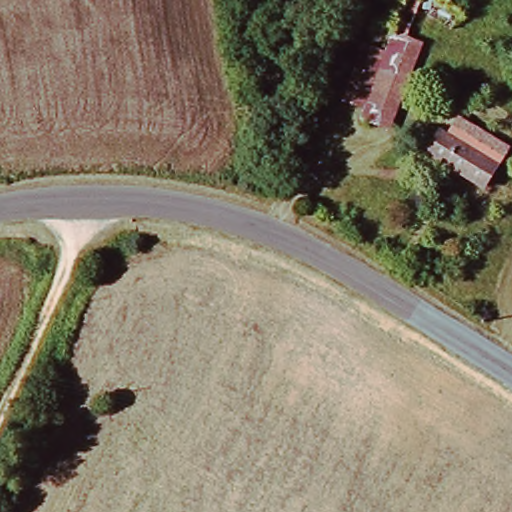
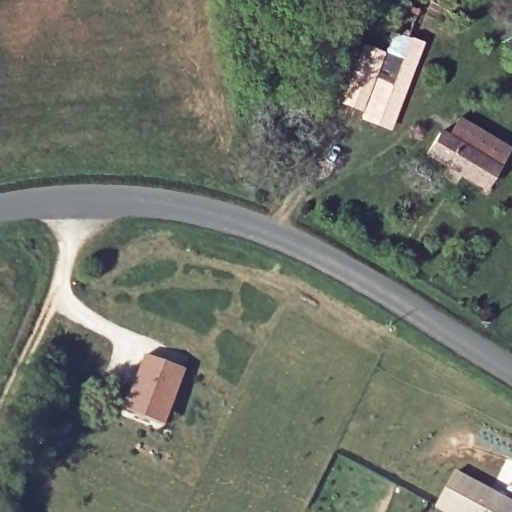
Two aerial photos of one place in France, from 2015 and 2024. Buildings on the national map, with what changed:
unchanged [(412,19),(424,23),(412,51),(419,54),(384,135),(366,127),(412,19)]
unchanged [(341,101),(361,46),(387,56),(366,111),(341,101)]
unchanged [(444,138),(454,121),(504,151),(483,192),(425,158),(438,135),(444,138)]
new [(144,354),(186,370),(165,426),(121,410),(144,354)]
new [(455,470),(512,500),(512,512),(442,512),(434,507),(455,470)]

